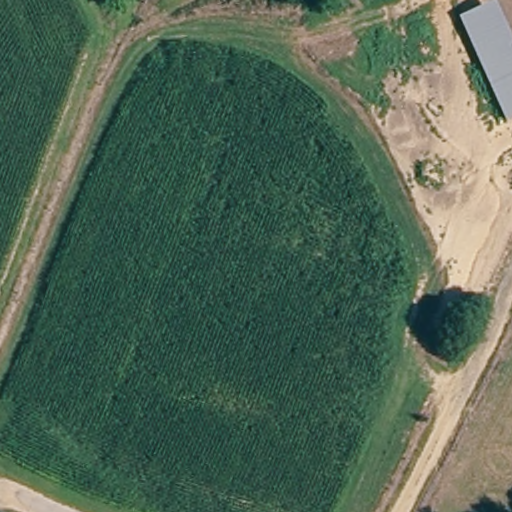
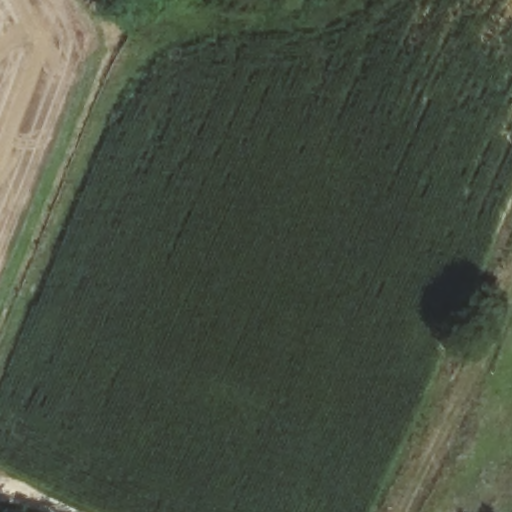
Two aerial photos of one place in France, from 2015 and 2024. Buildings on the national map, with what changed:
demolished [(506,124),(461,16),(497,2),(512,37),(512,121),(506,124)]

